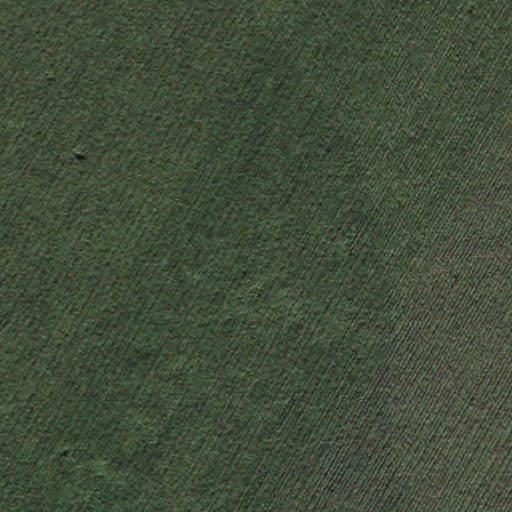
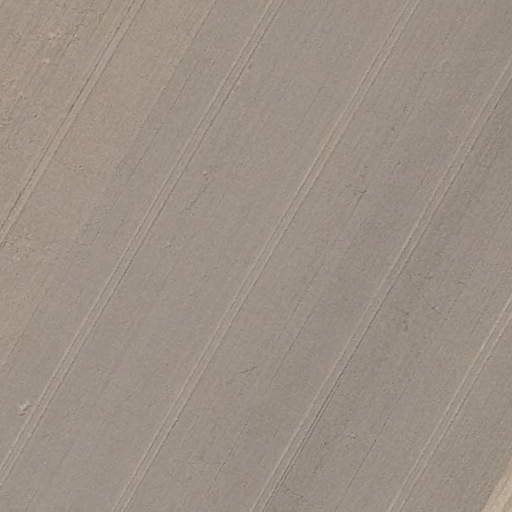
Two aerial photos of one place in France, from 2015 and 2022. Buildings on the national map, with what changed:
[]

